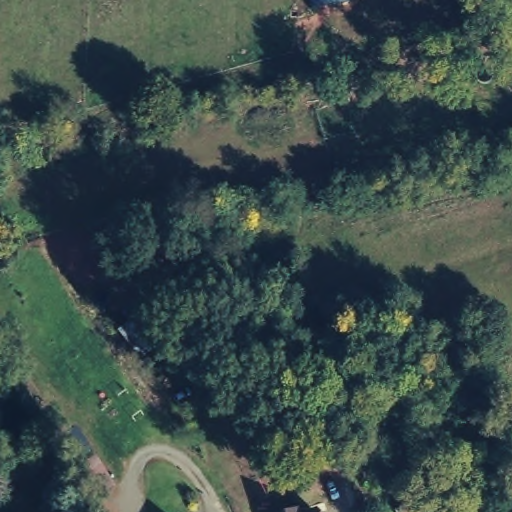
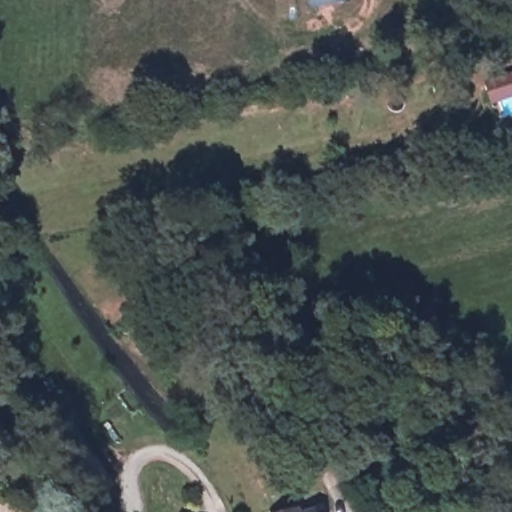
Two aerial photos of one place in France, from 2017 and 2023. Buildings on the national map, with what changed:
unchanged [(304,507),(306,512),(288,512),(304,507)]
unchanged [(319,511),(320,512),(315,512),(319,511)]

